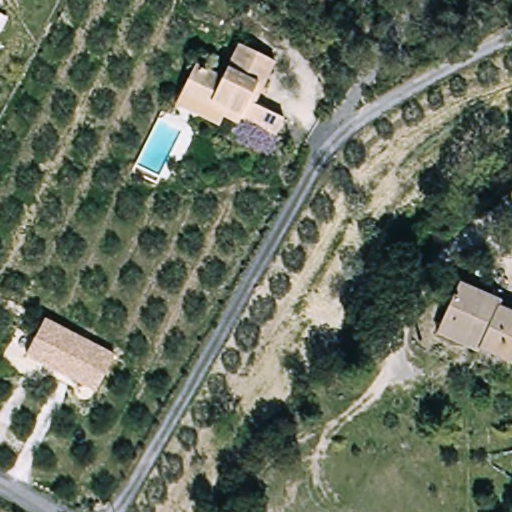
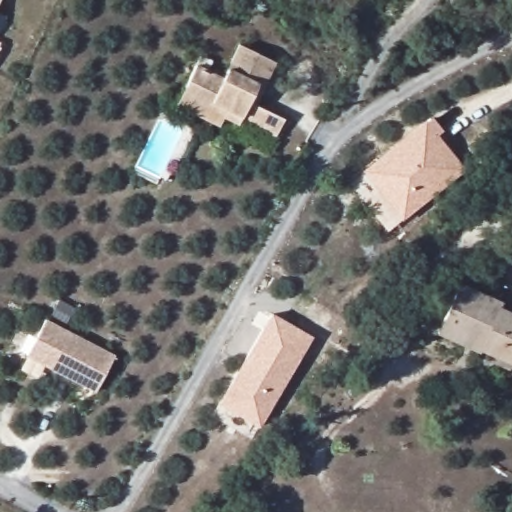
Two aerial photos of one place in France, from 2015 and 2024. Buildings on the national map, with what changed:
unchanged [(182,93),(193,67),(218,80),(233,48),(265,61),(247,102),(285,118),(275,138),(240,122),(237,128),(217,120),(177,102),(182,93)]
new [(432,116),(443,130),(437,134),(466,170),(401,220),(362,170),(432,116)]
unchanged [(462,288),(505,309),(502,315),(512,320),(512,368),(510,371),(476,353),(475,356),(437,339),(445,322),(462,288)]
new [(313,336),(260,426),(219,403),(271,312),(313,336)]
unchanged [(113,356),(95,392),(25,356),(43,321),(113,356)]

